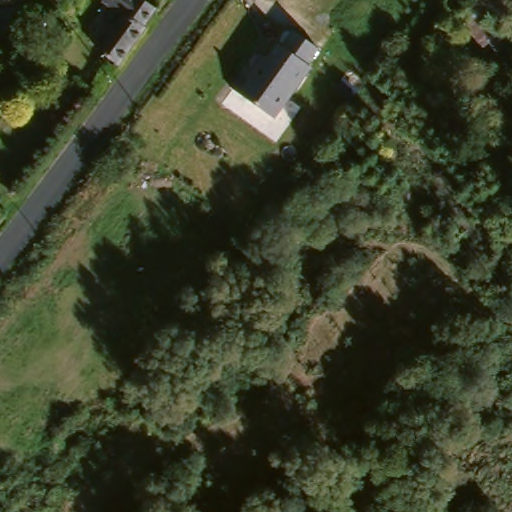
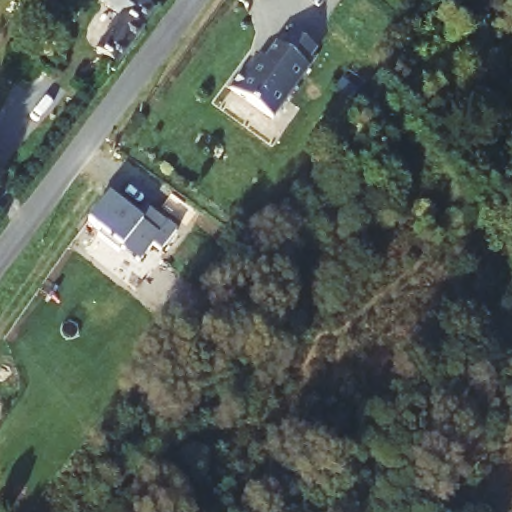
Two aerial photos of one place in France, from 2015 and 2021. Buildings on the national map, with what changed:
unchanged [(136,35),(136,38),(112,71),(91,56),(116,21),(96,7),(101,0),(129,0),(149,14),(136,35)]
unchanged [(253,53),(263,56),(274,41),(282,44),(291,31),(314,49),(303,64),(307,68),(270,116),(229,86),(253,53)]
new [(109,197),(160,234),(168,223),(178,231),(164,252),(156,245),(143,261),(124,248),(123,250),(101,236),(104,233),(91,223),(109,197)]

